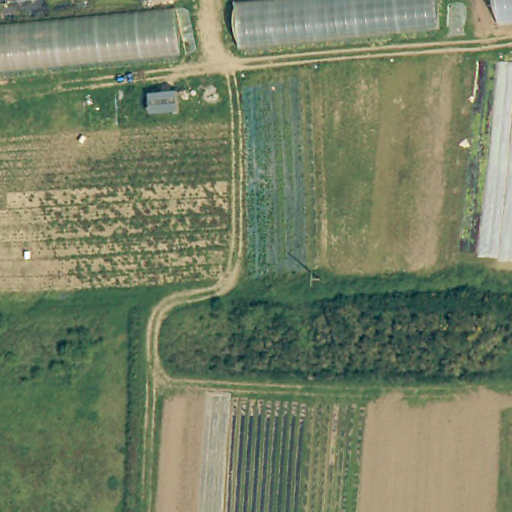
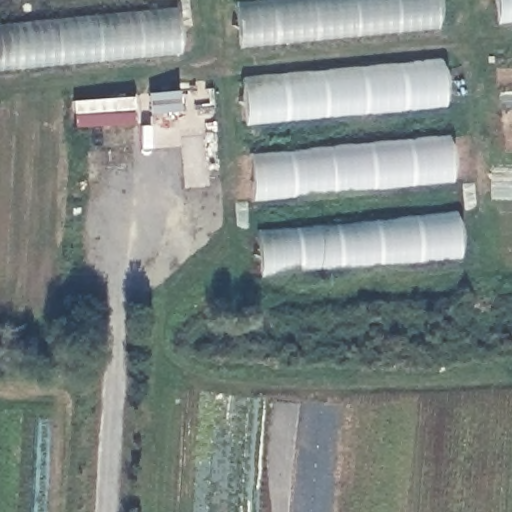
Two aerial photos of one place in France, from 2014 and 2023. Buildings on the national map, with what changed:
unchanged [(437,0),(440,28),(240,47),(236,5),(293,0),(437,0)]
unchanged [(512,0),(512,22),(497,24),(494,0),(512,0)]
unchanged [(0,70),(0,26),(177,9),(181,53),(0,70)]
new [(442,62),(446,107),(245,125),(242,80),(442,62)]
new [(448,138),(452,182),(252,200),(249,156),(448,138)]
new [(458,215),(463,260),(261,276),(257,234),(458,215)]

